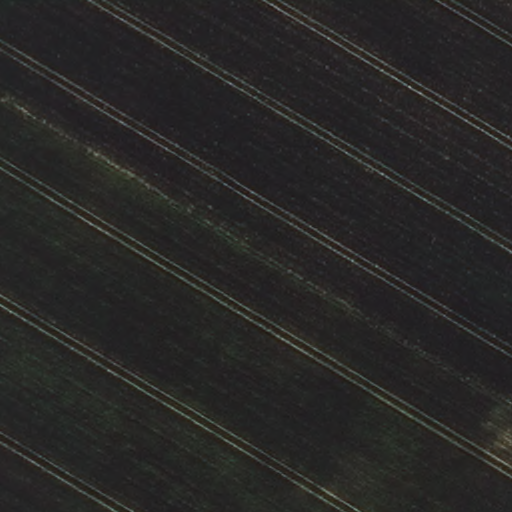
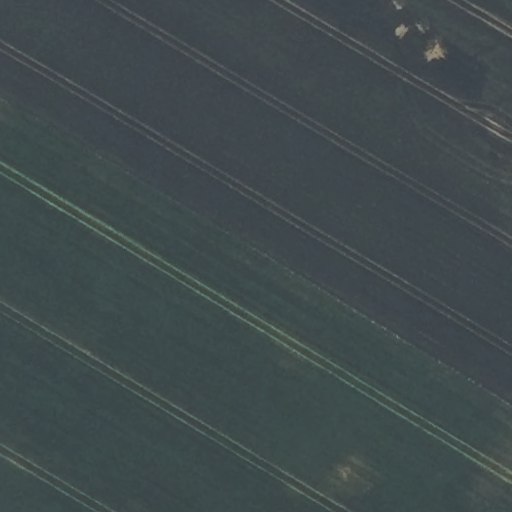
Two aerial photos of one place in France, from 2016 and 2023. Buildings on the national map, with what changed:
[]

